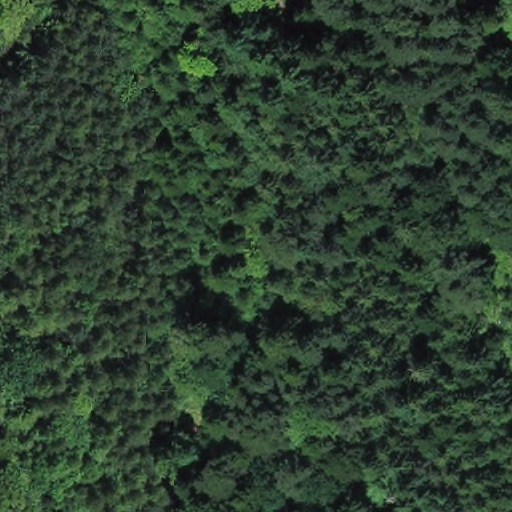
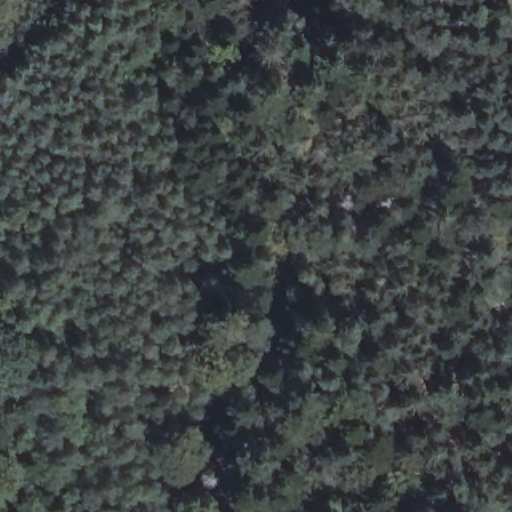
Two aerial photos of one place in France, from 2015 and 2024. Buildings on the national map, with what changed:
[]

